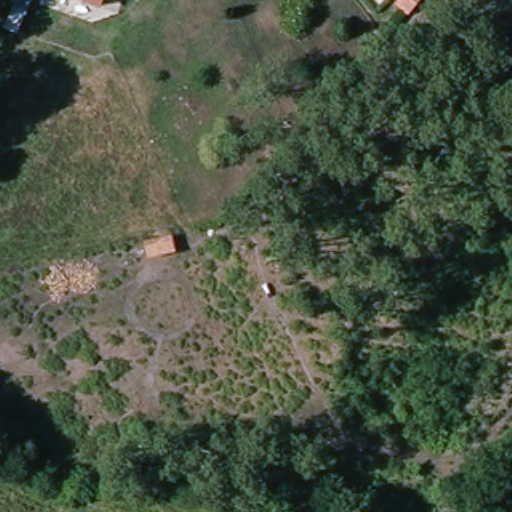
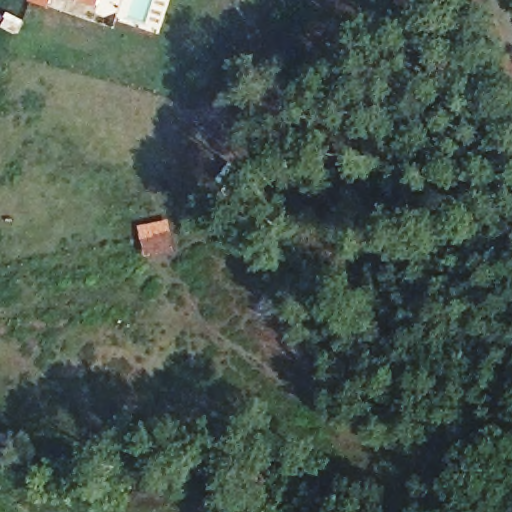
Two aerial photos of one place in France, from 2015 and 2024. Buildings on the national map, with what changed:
unchanged [(52,0),(55,0),(55,1),(52,0)]
unchanged [(98,0),(93,15),(55,1),(55,0),(98,0)]
unchanged [(392,21),(399,13),(407,20),(400,27),(392,21)]

